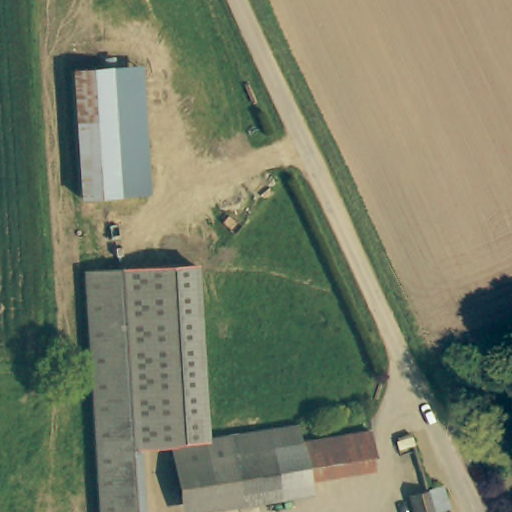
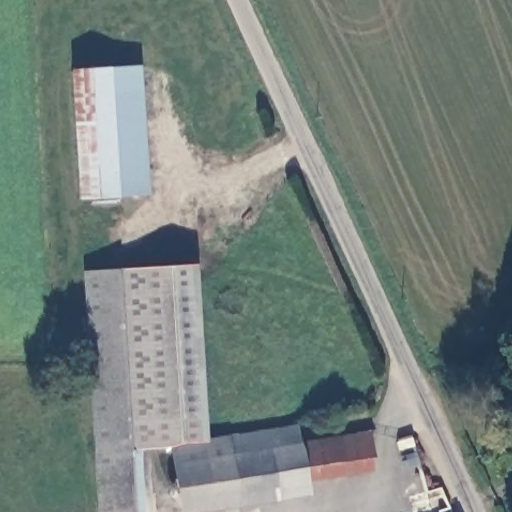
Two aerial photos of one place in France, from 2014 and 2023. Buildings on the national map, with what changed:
unchanged [(141,69),(150,191),(82,195),(71,74),(141,69)]
unchanged [(185,444),(139,449),(143,512),(108,512),(89,270),(196,259),(212,434),(235,433),(304,423),(307,443),(316,497),(247,505),(242,507),(192,511),(191,498),(185,444)]
unchanged [(382,430),(388,469),(320,481),(312,442),(377,431),(382,430)]
unchanged [(437,512),(418,512),(414,496),(417,494),(412,472),(423,469),(430,490),(444,488),(453,507),(437,511),(437,512)]

